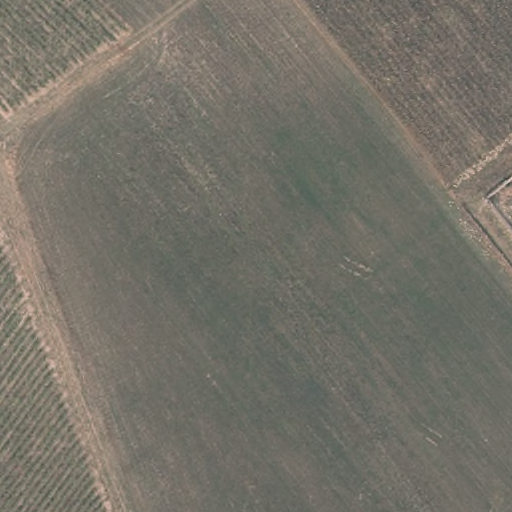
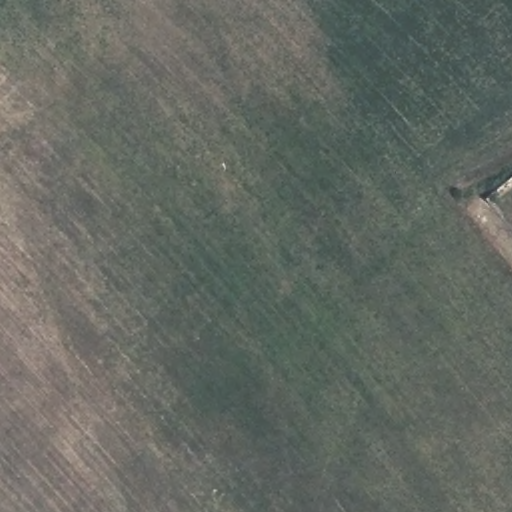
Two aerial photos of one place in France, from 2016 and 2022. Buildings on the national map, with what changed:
[]

